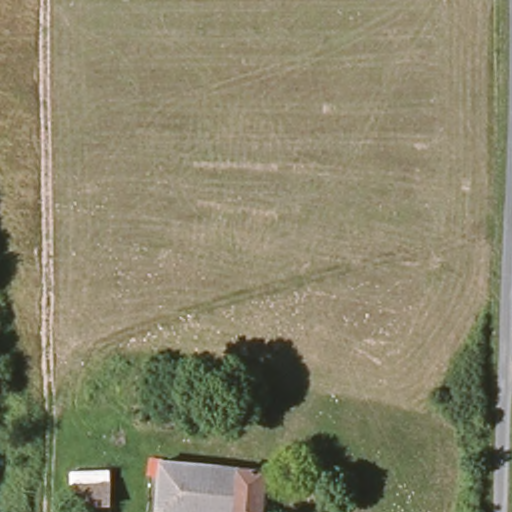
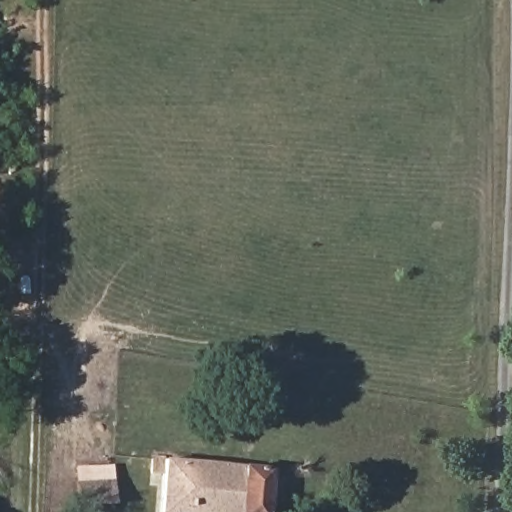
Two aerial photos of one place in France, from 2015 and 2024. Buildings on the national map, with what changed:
unchanged [(169,512),(169,505),(161,505),(161,495),(170,494),(170,476),(160,476),(162,464),(274,472),(272,512),(169,512)]
unchanged [(114,479),(116,512),(85,512),(85,481),(114,479)]

